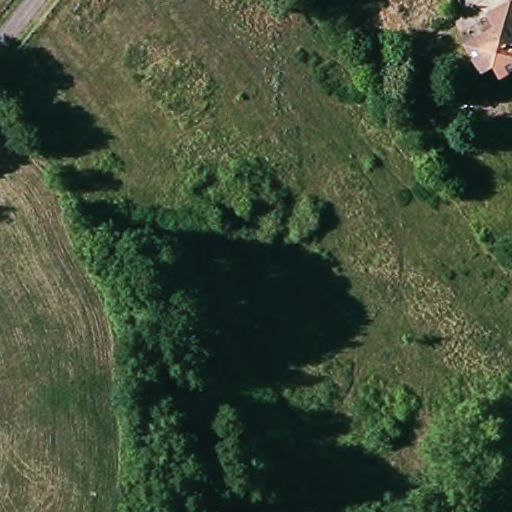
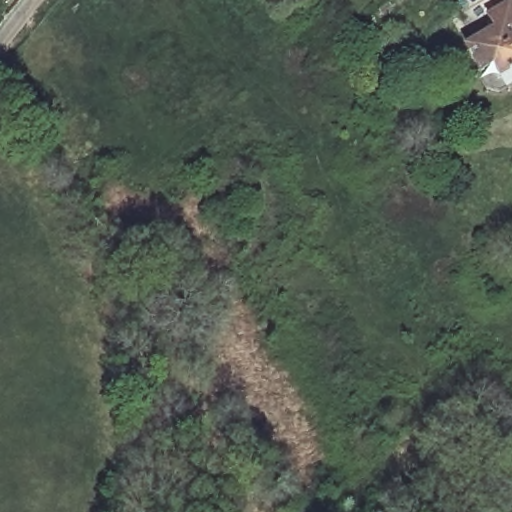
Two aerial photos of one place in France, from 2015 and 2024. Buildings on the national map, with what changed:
unchanged [(492,27),(486,15),(509,2),(512,8),(512,30),(511,30),(512,32),(512,61),(501,67),(496,60),(484,67),(469,41),(492,27)]

